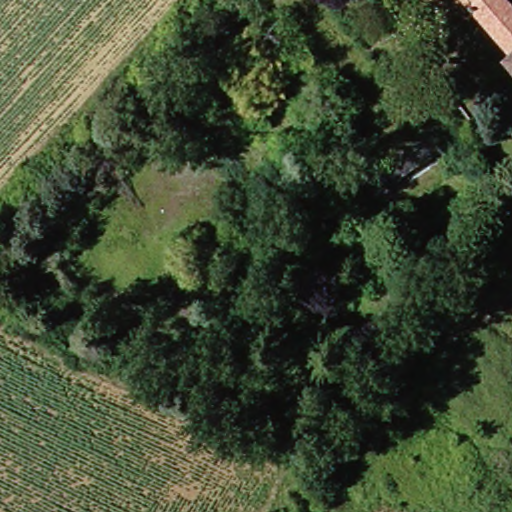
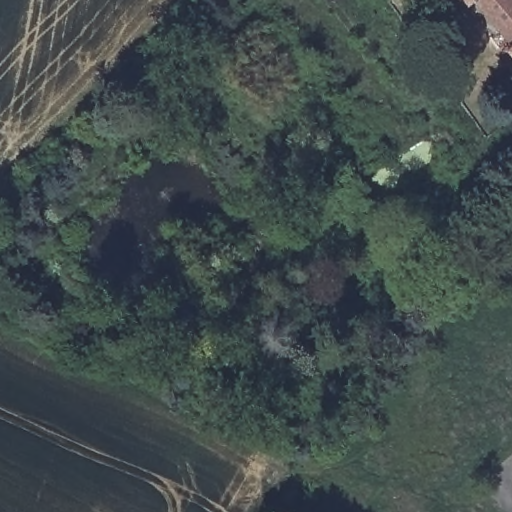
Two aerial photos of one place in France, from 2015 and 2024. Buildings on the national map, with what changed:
unchanged [(506,53),(467,8),(461,13),(452,3),(456,0),(507,0),(512,5),(512,69),(501,57),(506,53)]
unchanged [(345,175),(432,119),(448,141),(360,197),(345,175)]
unchanged [(396,265),(349,223),(361,210),(408,252),(396,265)]

